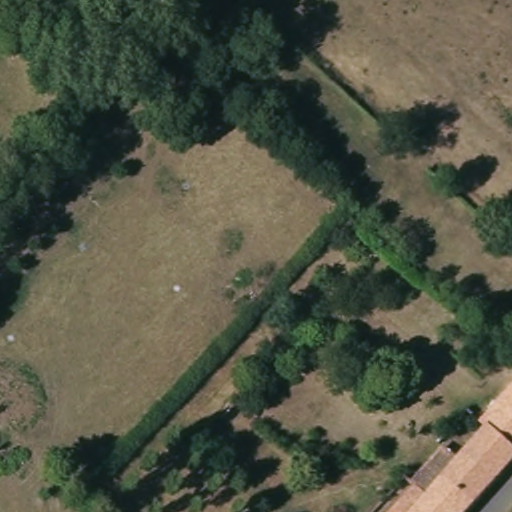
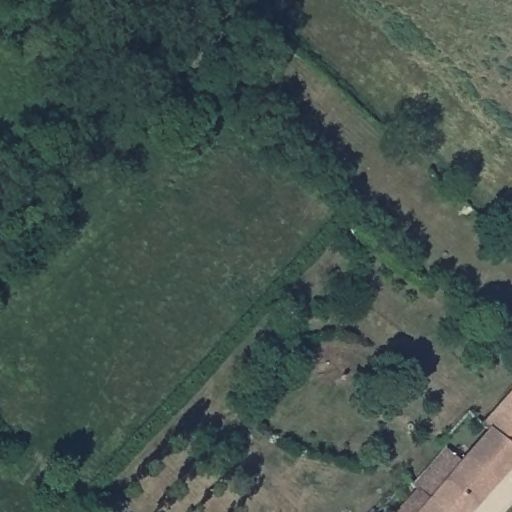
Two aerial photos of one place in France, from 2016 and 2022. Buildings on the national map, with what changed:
unchanged [(461,435),(512,377),(512,465),(509,468),(512,471),(512,480),(505,473),(471,512),(412,512),(471,444),(461,435)]
unchanged [(411,512),(398,512),(402,506),(411,512)]

